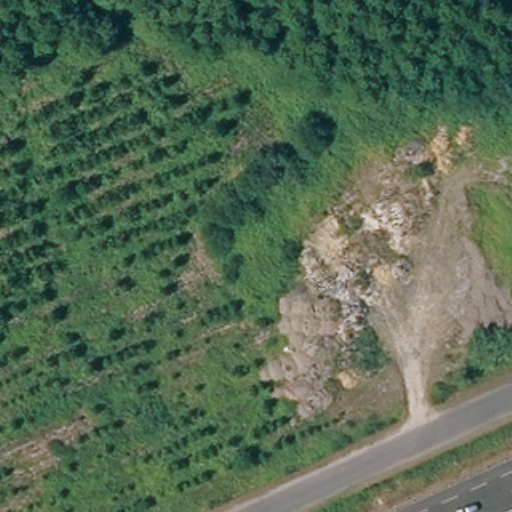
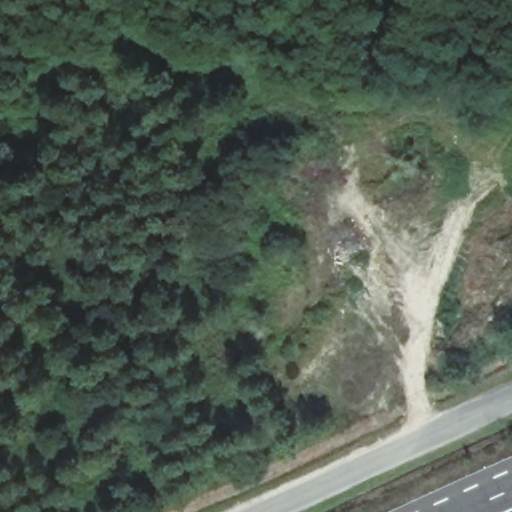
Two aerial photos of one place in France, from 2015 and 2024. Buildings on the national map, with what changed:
[]

